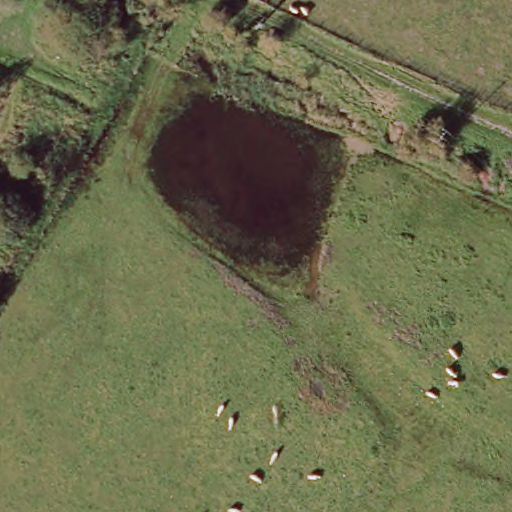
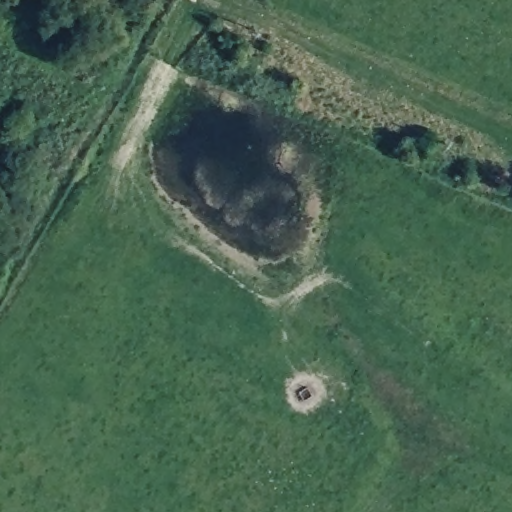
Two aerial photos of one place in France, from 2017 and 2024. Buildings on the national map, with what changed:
unchanged [(280,70),(268,66),(274,53),(285,58),(280,70)]

